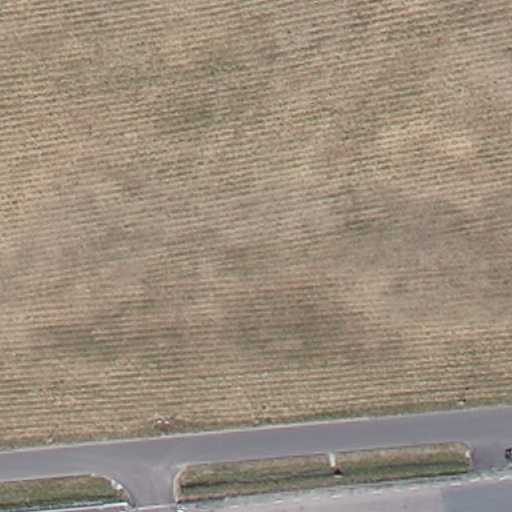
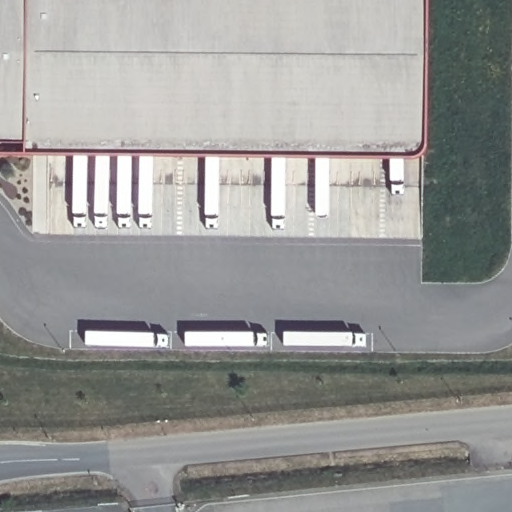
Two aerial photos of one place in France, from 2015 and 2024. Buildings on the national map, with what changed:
new [(0,148),(0,0),(430,0),(428,152),(0,148)]

